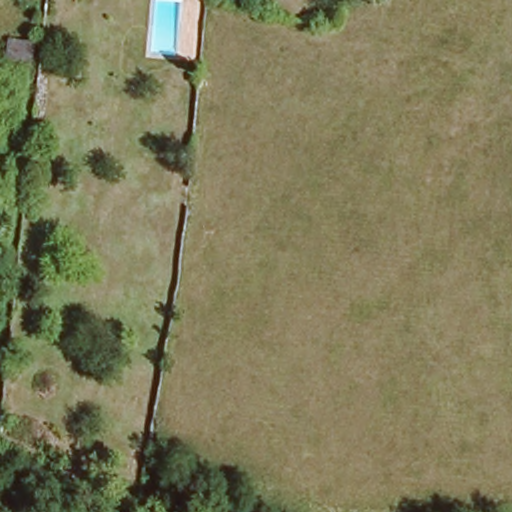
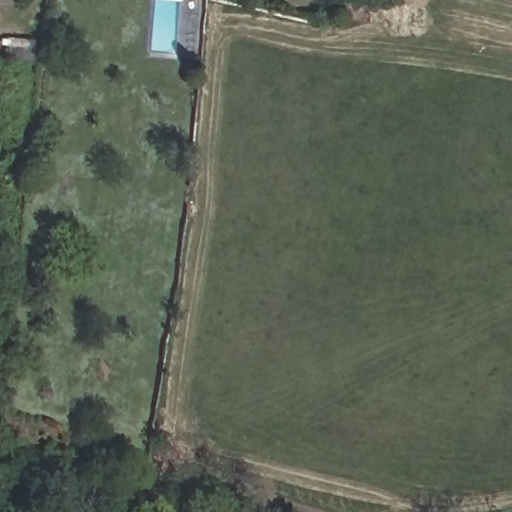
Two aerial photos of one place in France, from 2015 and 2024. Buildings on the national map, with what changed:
unchanged [(199,2),(188,1),(188,0),(199,0),(199,2)]

